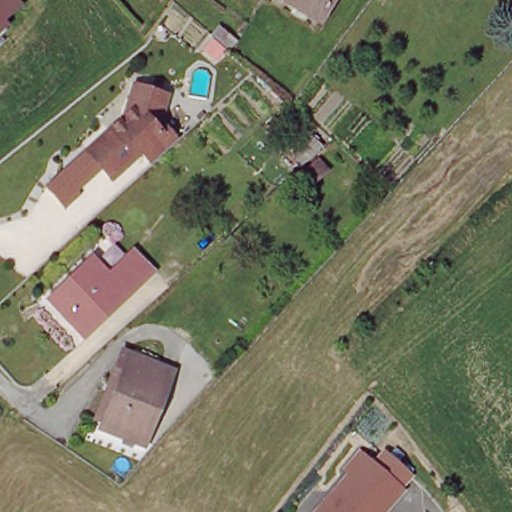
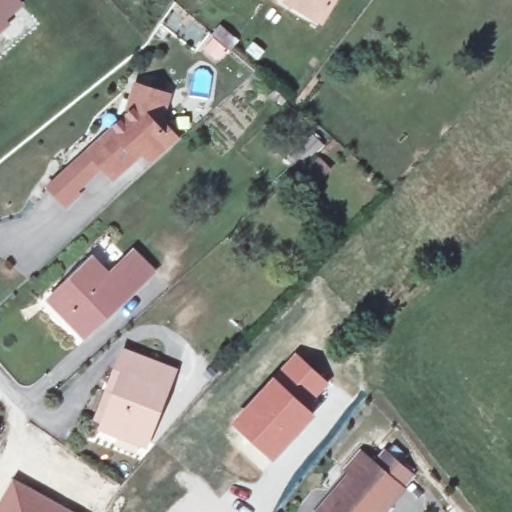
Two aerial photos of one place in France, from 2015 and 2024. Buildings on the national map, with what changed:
unchanged [(0,0),(18,0),(24,6),(0,26),(0,0)]
unchanged [(291,0),(328,0),(316,17),(291,0)]
unchanged [(138,150),(133,152),(131,160),(109,176),(85,151),(133,107),(127,98),(132,85),(163,97),(157,117),(174,139),(147,162),(138,150)]
new [(101,168),(77,191),(81,194),(64,209),(46,187),(85,151),(101,168)]
unchanged [(147,278),(89,336),(58,308),(94,265),(111,280),(128,261),(147,278)]
new [(295,351),(330,382),(308,406),(273,375),(295,351)]
unchanged [(118,376),(125,356),(160,368),(176,374),(170,393),(162,416),(157,414),(147,444),(109,430),(100,427),(118,376)]
new [(273,375),(308,406),(316,415),(273,461),(231,422),(273,375)]
unchanged [(316,512),(364,454),(406,490),(386,512),(316,512)]
new [(75,512),(0,512),(0,499),(12,477),(75,512)]

